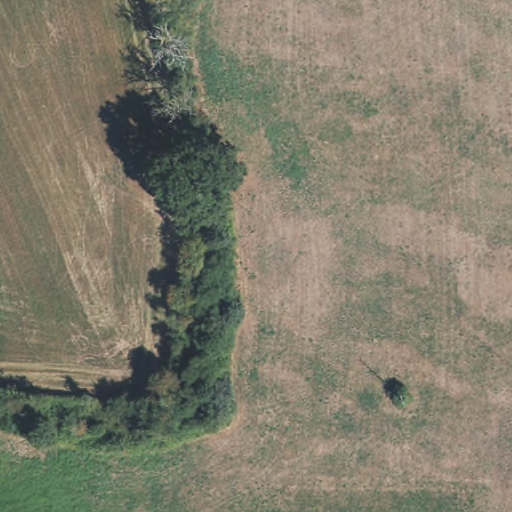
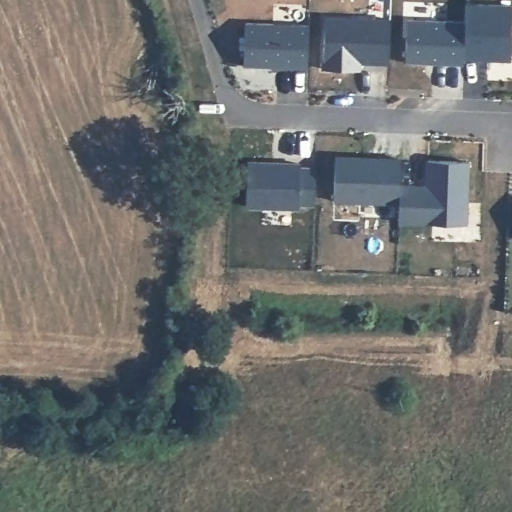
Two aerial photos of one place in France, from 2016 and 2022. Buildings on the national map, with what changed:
new [(465,4),(512,5),(512,16),(510,61),(462,59),(464,22),(465,4)]
new [(358,70),(322,69),(324,18),(390,21),(388,64),(371,63),(358,62),(358,70)]
new [(406,20),(464,22),(462,59),(462,65),(405,62),(406,20)]
new [(247,23),(308,25),(307,68),(245,66),(247,23)]
new [(335,157),(400,160),(399,185),(398,203),(332,200),(335,157)]
new [(399,185),(416,186),(426,187),(427,161),(467,163),(465,225),(397,222),(398,203),(399,185)]
new [(247,162),(299,165),(299,169),(315,169),(313,205),(297,204),(297,208),(246,206),(247,162)]

